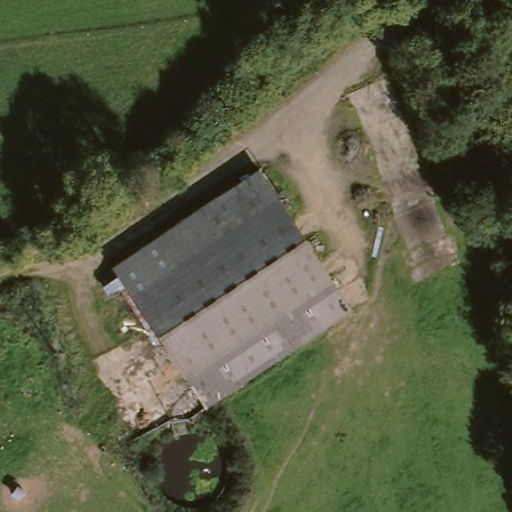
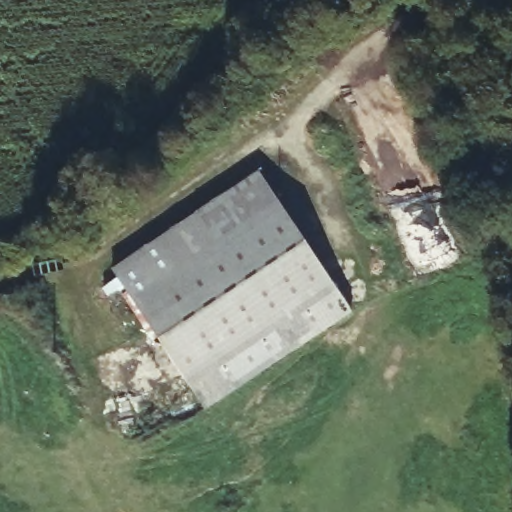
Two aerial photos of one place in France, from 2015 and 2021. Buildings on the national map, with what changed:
unchanged [(260,172),(279,200),(216,242),(198,215),(260,172)]
unchanged [(145,187),(149,194),(152,199),(131,212),(128,207),(124,201),(145,187)]
unchanged [(216,242),(279,200),(353,310),(208,407),(166,346),(158,343),(122,290),(113,296),(106,287),(121,277),(115,270),(198,215),(216,242)]

